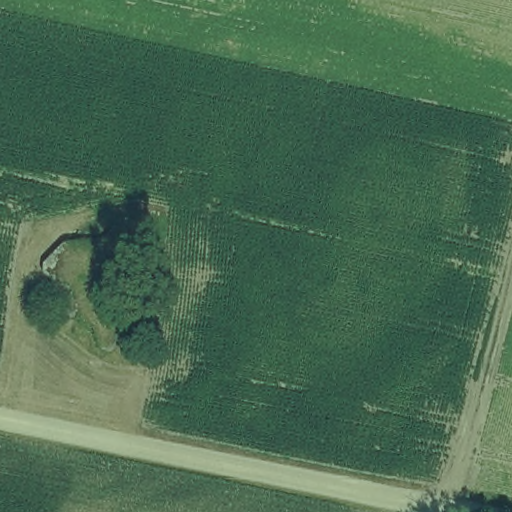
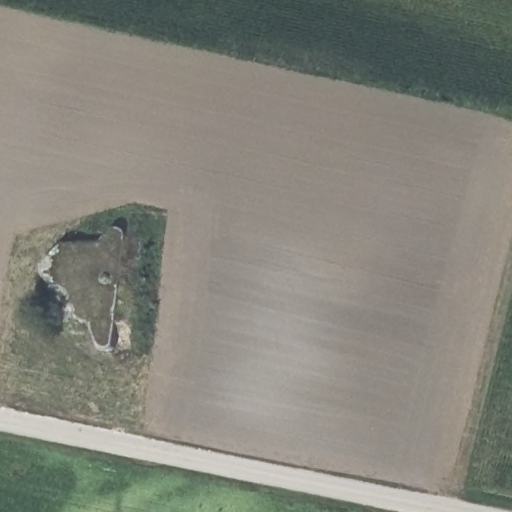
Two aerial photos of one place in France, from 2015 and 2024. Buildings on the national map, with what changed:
unchanged [(141,281),(119,304),(136,322),(113,344),(97,326),(78,320),(41,275),(64,244),(103,242),(119,225),(143,246),(141,281)]

